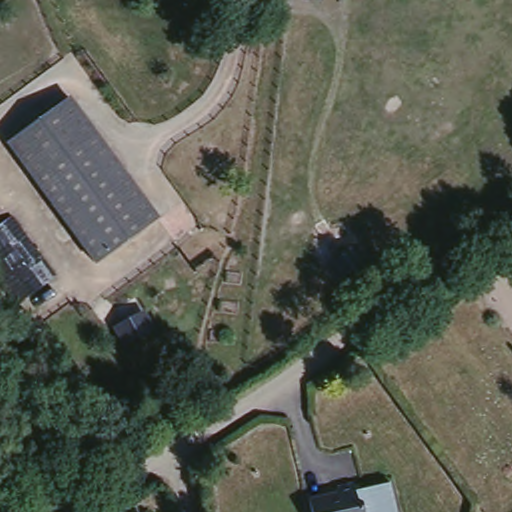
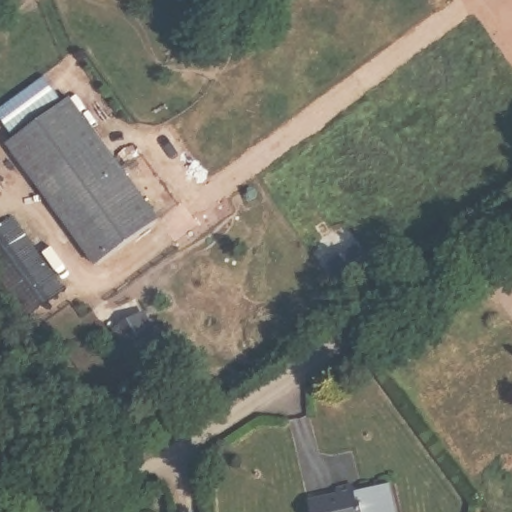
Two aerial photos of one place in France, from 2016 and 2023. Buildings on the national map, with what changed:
unchanged [(66,100),(152,214),(90,260),(5,143),(66,100)]
unchanged [(113,319),(139,305),(147,317),(120,331),(113,319)]
unchanged [(335,487),(347,485),(351,501),(355,504),(357,512),(311,512),(308,500),(334,494),(335,487)]
unchanged [(351,501),(349,493),(389,485),(396,512),(357,512),(355,504),(351,501)]

